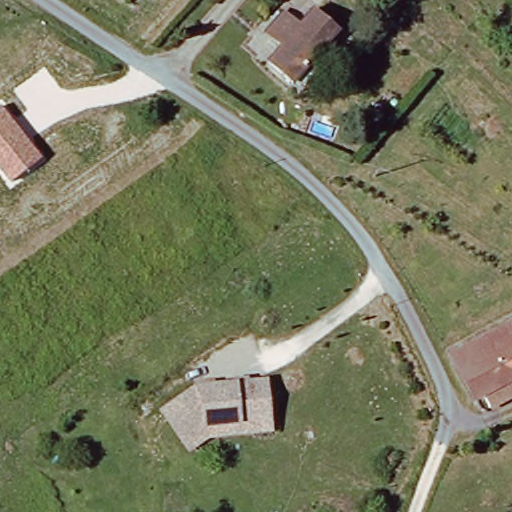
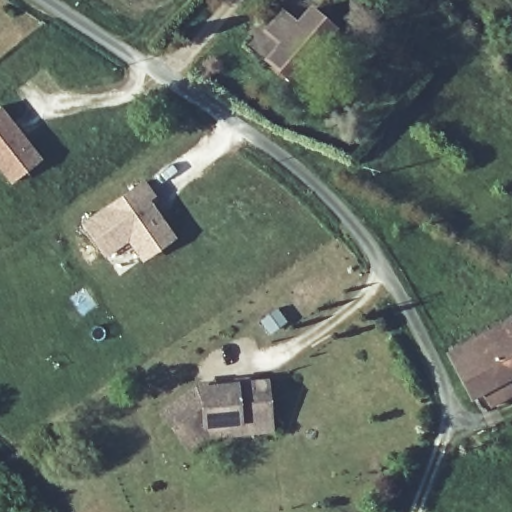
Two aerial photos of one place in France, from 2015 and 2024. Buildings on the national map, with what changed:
unchanged [(328,51),(308,74),(300,67),(287,82),(263,62),(277,46),(260,32),(280,10),(297,22),(308,11),(332,30),(320,44),(328,51)]
unchanged [(42,157),(12,182),(0,167),(0,105),(1,105),(42,157)]
new [(139,187),(147,197),(142,201),(150,212),(147,215),(152,222),(157,221),(169,237),(137,257),(125,240),(102,255),(80,225),(139,187)]
unchanged [(482,394),(471,399),(447,357),(512,322),(512,378),(508,380),(512,387),(512,395),(488,407),(482,394)]
unchanged [(205,433),(187,446),(181,437),(161,408),(194,386),(264,380),(267,418),(268,428),(205,433)]

